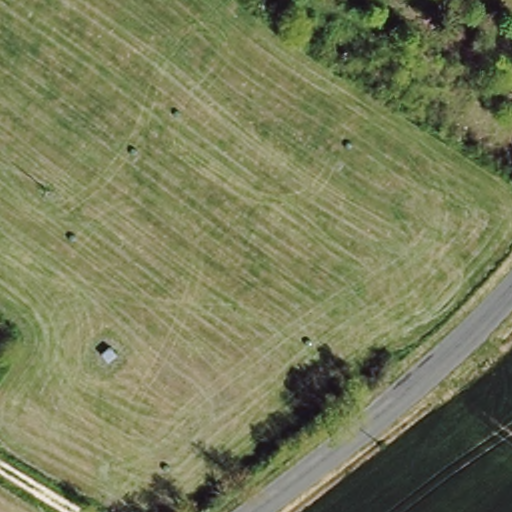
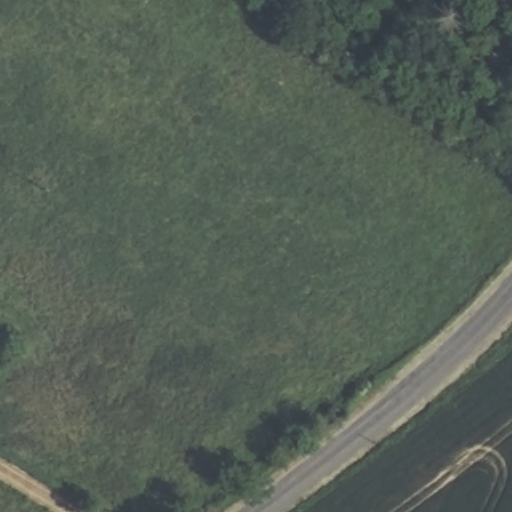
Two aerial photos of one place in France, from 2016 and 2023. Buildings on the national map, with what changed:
[]

